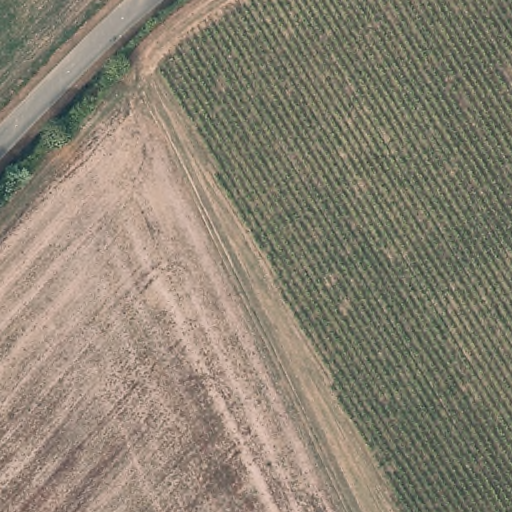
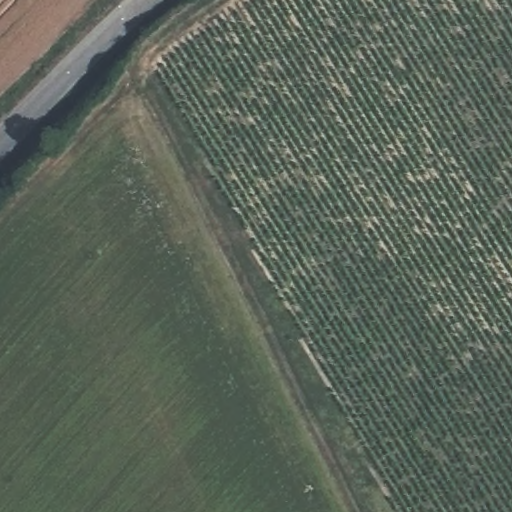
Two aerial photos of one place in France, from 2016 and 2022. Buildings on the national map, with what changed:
[]

